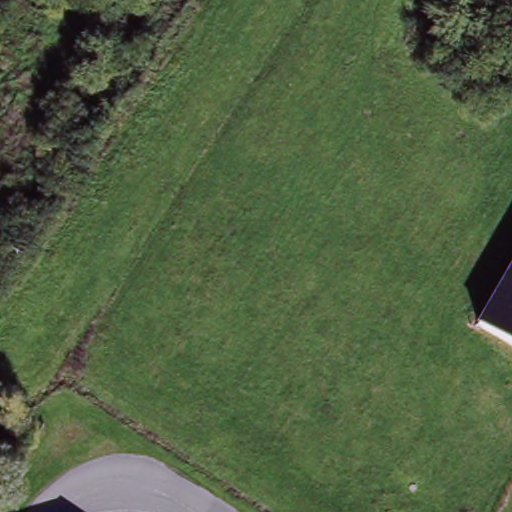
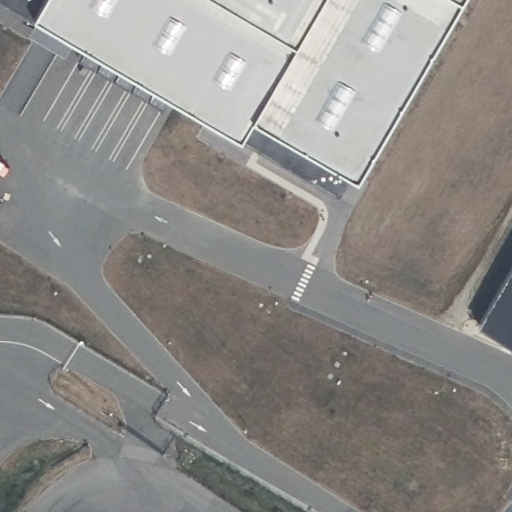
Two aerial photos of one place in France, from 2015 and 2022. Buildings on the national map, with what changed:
new [(351,169),(338,195),(240,134),(74,36),(65,53),(28,33),(35,21),(0,2),(0,0),(460,0),(358,173),(351,169)]
new [(2,201),(0,204),(0,200),(2,201)]
unchanged [(512,273),(512,335),(485,320),(512,273)]

